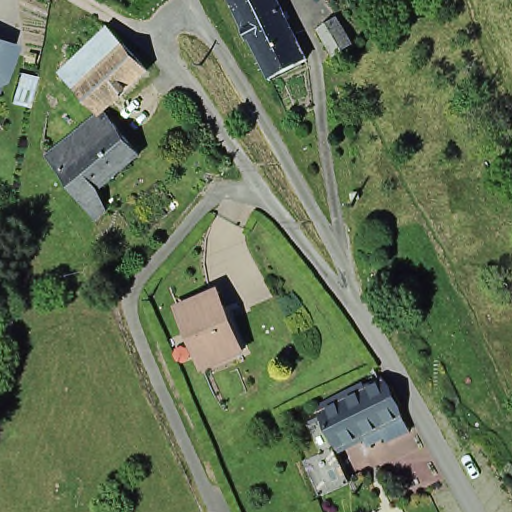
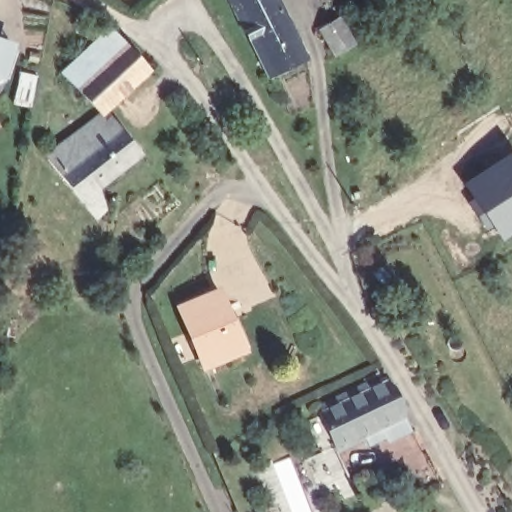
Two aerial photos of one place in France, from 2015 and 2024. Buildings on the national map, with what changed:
unchanged [(281,0),(289,17),(250,36),(233,4),(232,0),(281,0)]
unchanged [(328,10),(324,0),(339,0),(340,3),(328,10)]
unchanged [(350,36),(360,30),(366,40),(337,58),(320,27),(339,16),(350,36)]
unchanged [(310,59),(270,78),(250,36),(289,17),(310,59)]
unchanged [(107,112),(99,118),(61,76),(109,33),(150,73),(107,112)]
unchanged [(18,50),(3,94),(0,92),(0,44),(18,50)]
unchanged [(99,118),(107,112),(144,158),(110,185),(88,154),(97,148),(84,131),(99,118)]
unchanged [(97,220),(47,161),(84,131),(97,148),(88,154),(110,185),(105,189),(108,211),(97,220)]
new [(512,154),(512,236),(504,242),(463,184),(510,152),(512,154)]
unchanged [(242,352),(203,369),(177,308),(217,290),(229,319),(240,316),(254,347),(242,352)]
unchanged [(414,434),(389,442),(384,431),(338,448),(336,444),(322,410),(319,402),(368,383),(370,388),(390,381),(414,434)]
unchanged [(338,448),(351,480),(326,490),(317,494),(303,458),(311,455),(336,444),(338,448)]

